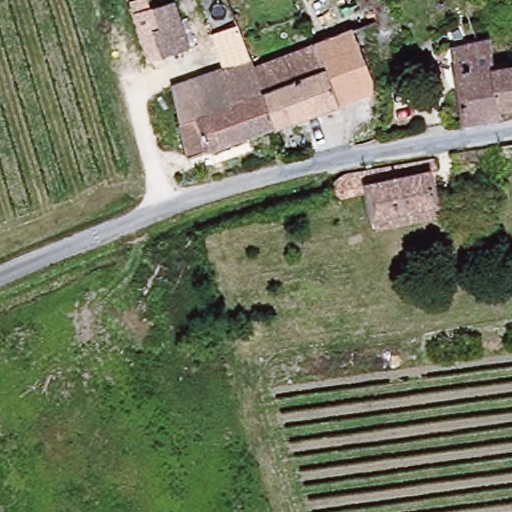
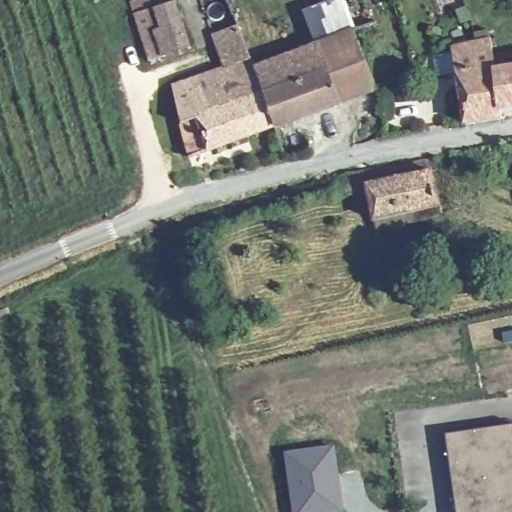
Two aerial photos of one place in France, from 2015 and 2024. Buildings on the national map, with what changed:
unchanged [(204,0),(227,0),(251,66),(231,74),(204,0)]
unchanged [(149,2),(153,11),(179,1),(196,47),(155,63),(140,25),(135,7),(149,2)]
unchanged [(352,30),(366,70),(370,81),(369,89),(363,92),(273,125),(251,66),(352,30)]
unchanged [(452,46),(474,42),(489,40),(491,53),(494,70),(499,102),(502,112),(464,119),(452,46)]
unchanged [(187,157),(173,94),(231,74),(251,66),(273,125),(187,157)]
unchanged [(512,67),(512,100),(499,102),(494,70),(512,67)]
unchanged [(382,135),(383,78),(411,76),(414,106),(395,110),(399,132),(382,135)]
unchanged [(449,146),(492,141),(498,173),(466,176),(465,166),(452,167),(449,146)]
unchanged [(336,200),(333,185),(342,180),(441,165),(443,179),(435,182),(440,216),(375,224),(371,195),(336,200)]
new [(448,431),(474,427),(512,423),(512,512),(459,512),(451,451),(448,431)]
new [(345,512),(292,512),(282,450),(334,442),(345,512)]

